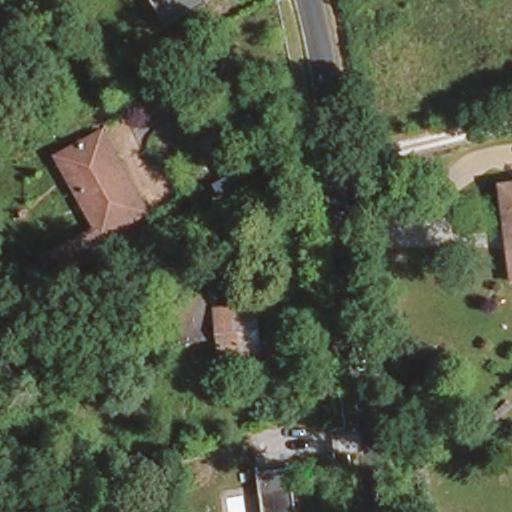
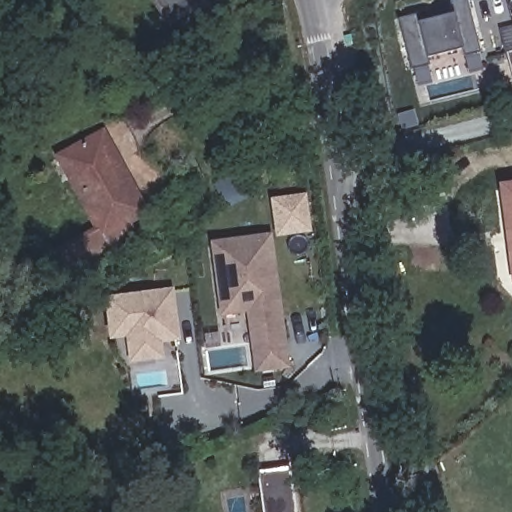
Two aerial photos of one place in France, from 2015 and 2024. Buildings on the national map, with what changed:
demolished [(153,26),(132,36),(114,0),(139,0),(145,12),(153,26)]
new [(167,29),(152,0),(206,0),(209,6),(167,29)]
new [(461,48),(427,56),(429,65),(411,70),(398,17),(417,13),(420,20),(453,12),(450,0),(468,0),(480,52),(463,56),(461,48)]
unchanged [(42,12),(50,27),(35,35),(27,20),(42,12)]
unchanged [(146,200),(132,207),(139,225),(68,263),(55,237),(96,215),(90,205),(56,145),(65,140),(99,122),(146,200)]
unchanged [(221,179),(239,170),(254,194),(235,205),(221,179)]
unchanged [(499,179),(512,177),(512,268),(499,179)]
new [(270,198),(306,193),(311,232),(276,236),(270,198)]
new [(253,373),(245,312),(219,315),(210,241),(271,233),(289,368),(253,373)]
new [(161,341),(163,359),(128,363),(126,337),(108,340),(104,297),(173,287),(179,340),(161,341)]
demolished [(254,297),(260,349),(220,354),(213,302),(254,297)]
unchanged [(294,512),(261,512),(259,501),(264,500),(260,467),(287,463),(294,512)]

